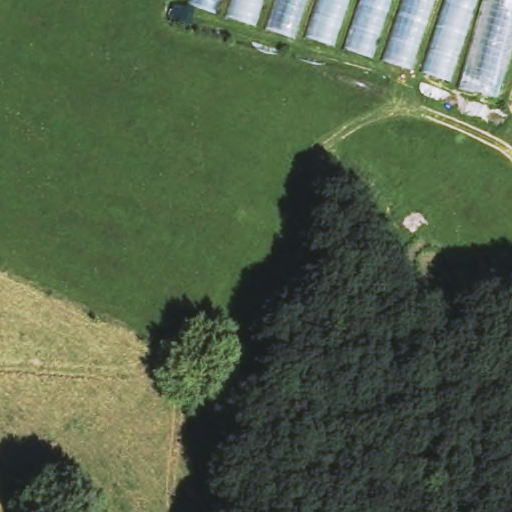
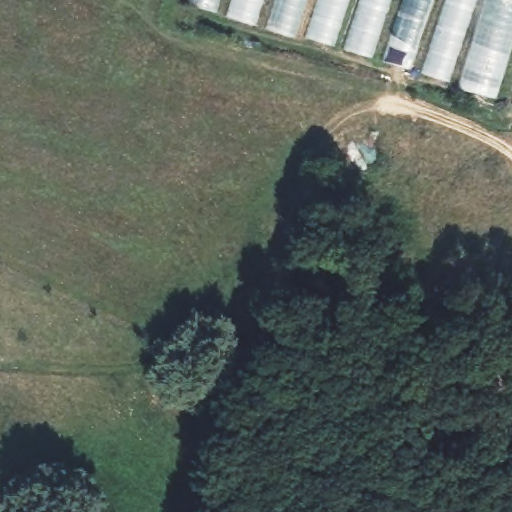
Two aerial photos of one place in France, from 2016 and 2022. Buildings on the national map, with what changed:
unchanged [(187,0),(477,0),(451,75),(187,0)]
unchanged [(451,75),(477,0),(512,0),(512,55),(501,90),(451,75)]

